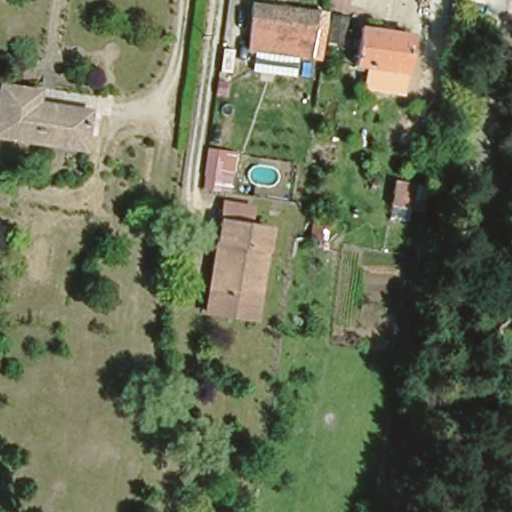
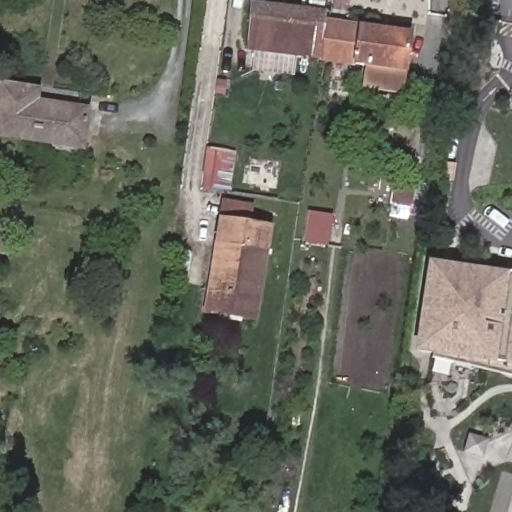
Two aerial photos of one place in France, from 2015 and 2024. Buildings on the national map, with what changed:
unchanged [(315,11),(312,53),(250,48),(254,6),(315,11)]
unchanged [(325,47),(329,20),(347,22),(342,50),(325,47)]
unchanged [(348,27),(397,32),(394,69),(365,66),(345,64),(348,27)]
new [(365,66),(394,69),(405,70),(402,96),(361,90),(365,66)]
unchanged [(37,100),(41,101),(87,109),(82,148),(36,140),(0,135),(0,83),(38,89),(37,100)]
new [(206,149),(235,153),(230,192),(201,188),(206,149)]
unchanged [(277,171),(276,180),(254,177),(256,167),(277,171)]
unchanged [(412,176),(408,202),(390,199),(393,173),(412,176)]
unchanged [(244,302),(210,296),(222,223),(225,208),(255,212),(252,228),(271,231),(262,280),(258,304),(244,302)]
unchanged [(323,213),(321,233),(308,232),(311,211),(323,213)]
new [(483,271),(512,275),(512,369),(431,357),(412,354),(427,262),(483,271)]
new [(483,271),(512,271),(512,275),(483,271)]
new [(512,369),(512,376),(431,357),(512,369)]

